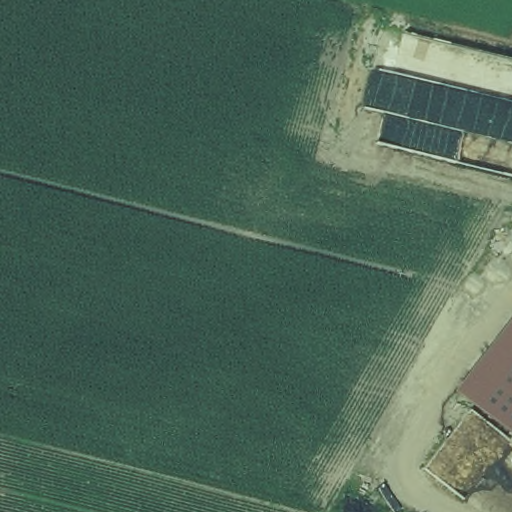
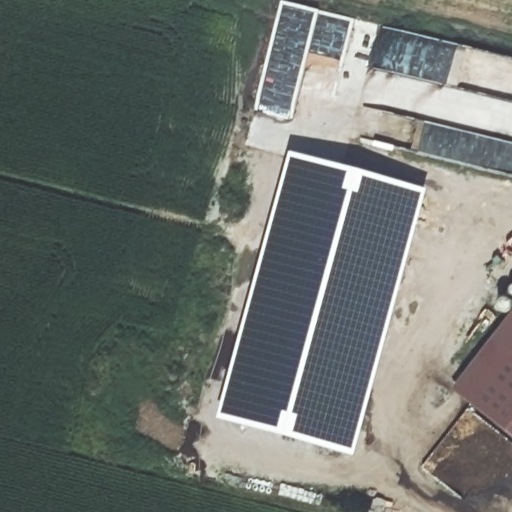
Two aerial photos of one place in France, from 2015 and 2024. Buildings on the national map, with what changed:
new [(432,192),(371,455),(226,416),(289,157),(432,192)]
demolished [(365,411),(337,408),(380,191),(408,199),(365,411)]
unchanged [(512,315),(512,436),(454,390),(512,315)]

